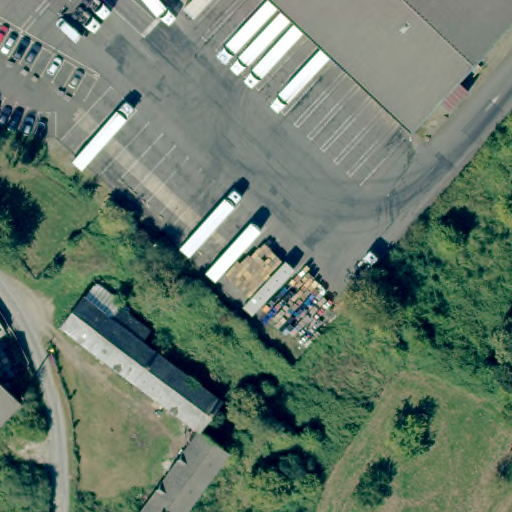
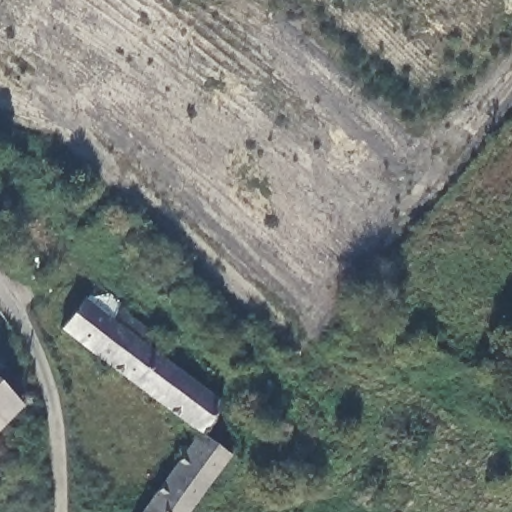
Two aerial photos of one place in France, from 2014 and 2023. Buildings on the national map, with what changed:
demolished [(414,131),(276,0),(512,0),(512,28),(414,131)]
unchanged [(78,300),(89,283),(115,302),(113,305),(146,330),(136,343),(215,402),(192,434),(55,330),(78,300)]
unchanged [(26,387),(19,395),(14,390),(20,382),(26,387)]
unchanged [(9,393),(15,400),(13,403),(15,405),(0,422),(0,391),(5,396),(9,393)]
unchanged [(192,434),(223,458),(183,512),(135,512),(192,434)]

